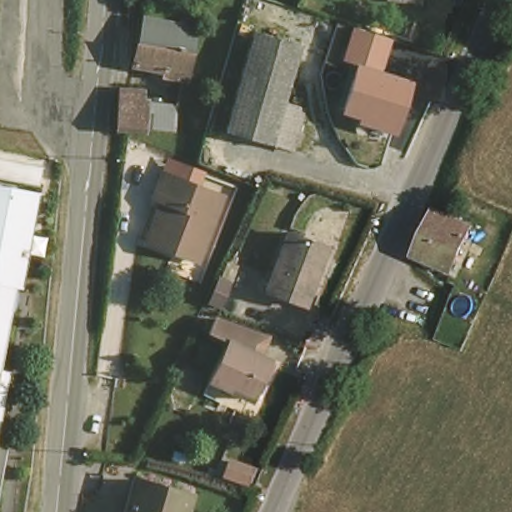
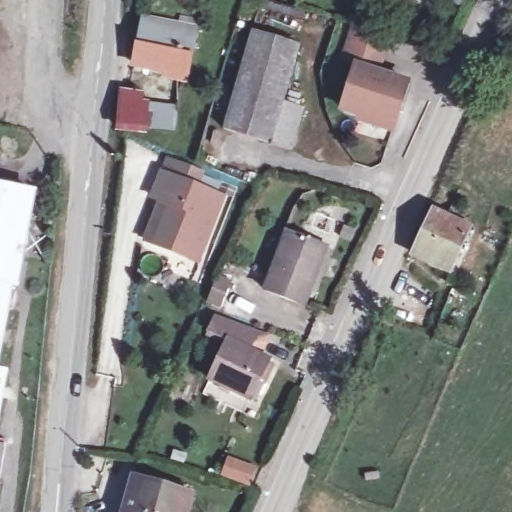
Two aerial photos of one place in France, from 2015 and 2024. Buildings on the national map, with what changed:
unchanged [(145,16),(195,26),(185,72),(135,60),(145,16)]
unchanged [(391,40),(382,71),(412,80),(395,134),(355,121),(356,119),(339,113),(355,64),(341,60),(352,27),(391,40)]
unchanged [(255,37),(302,50),(286,108),(303,113),(293,153),(225,133),(255,37)]
unchanged [(127,89),(148,92),(148,101),(152,102),(151,130),(132,128),(123,127),(127,89)]
unchanged [(162,200),(152,196),(163,170),(222,192),(197,257),(154,240),(147,237),(162,200)]
unchanged [(20,285),(12,285),(0,359),(0,189),(35,195),(20,285)]
unchanged [(418,257),(437,214),(472,229),(452,273),(418,257)]
unchanged [(290,237),(330,252),(306,312),(267,297),(290,237)]
unchanged [(222,280),(235,286),(223,311),(210,305),(222,280)]
unchanged [(218,324),(270,343),(260,365),(269,369),(252,405),(210,386),(227,350),(212,343),(218,324)]
unchanged [(0,422),(0,366),(10,368),(0,422)]
unchanged [(0,468),(0,446),(4,447),(0,468)]
unchanged [(135,485),(190,501),(187,512),(127,512),(135,485)]

